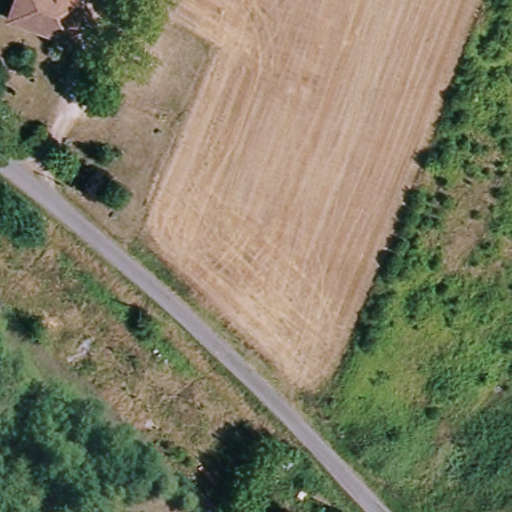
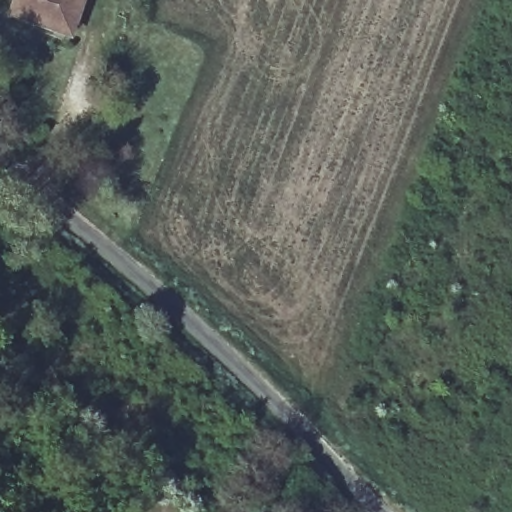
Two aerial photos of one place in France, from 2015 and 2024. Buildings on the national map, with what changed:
unchanged [(11,0),(78,0),(68,26),(64,38),(40,29),(41,27),(5,14),(11,0)]
unchanged [(292,459),(272,483),(254,471),(275,444),(292,459)]
unchanged [(332,502),(325,512),(309,512),(298,506),(310,488),(332,502)]

